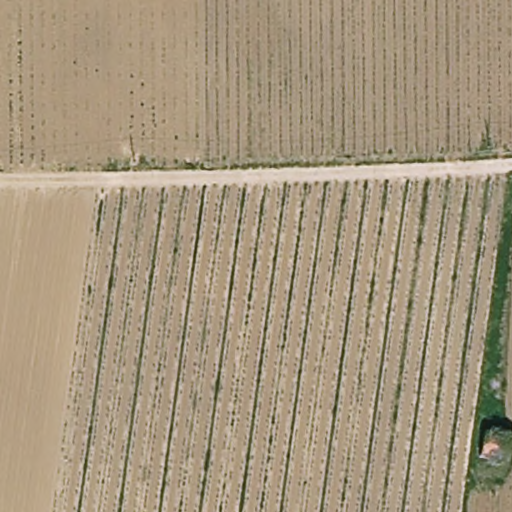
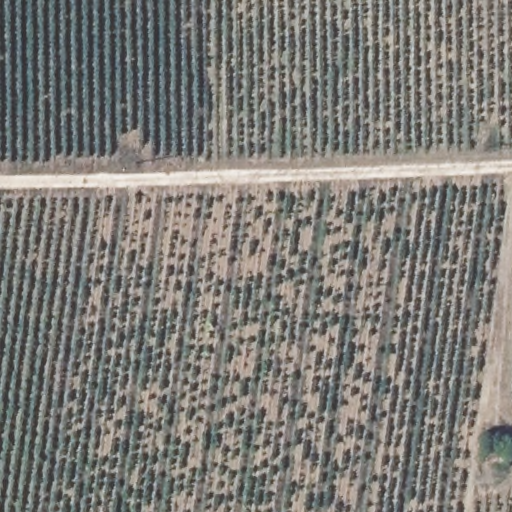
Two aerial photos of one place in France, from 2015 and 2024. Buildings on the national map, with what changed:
unchanged [(508,436),(501,463),(478,457),(485,431),(508,436)]

